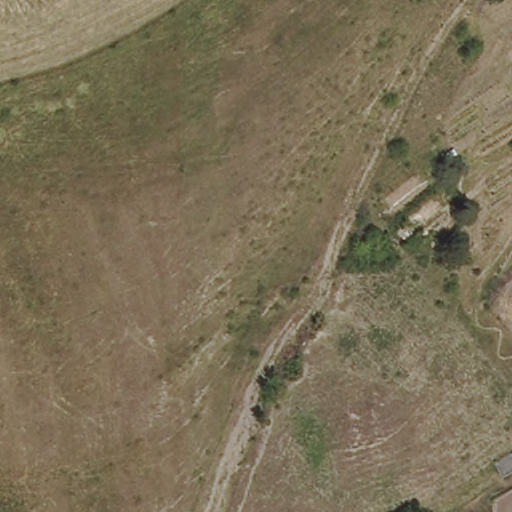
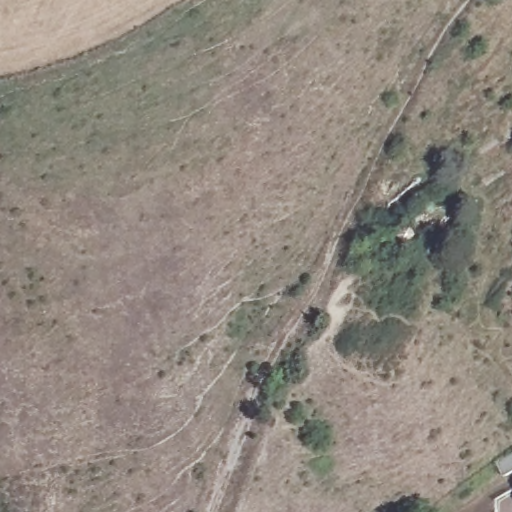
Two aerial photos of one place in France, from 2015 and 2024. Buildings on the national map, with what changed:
unchanged [(504,477),(495,461),(512,452),(512,472),(504,477)]

